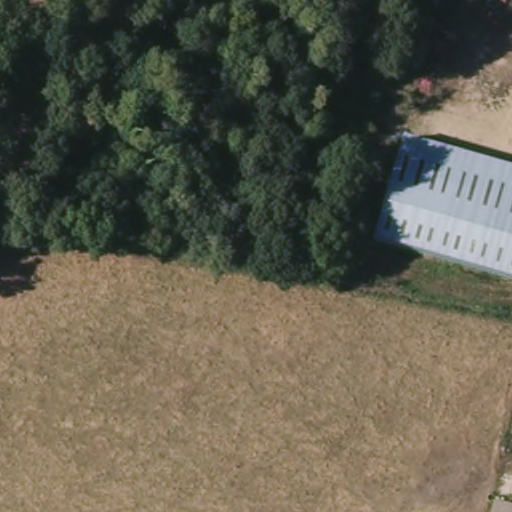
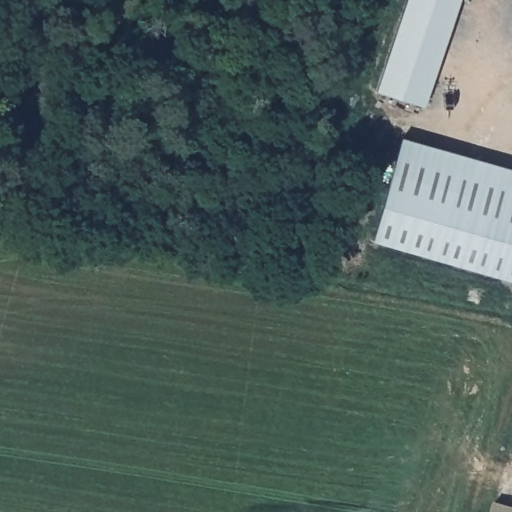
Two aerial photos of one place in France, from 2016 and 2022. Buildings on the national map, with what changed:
new [(406,0),(459,0),(424,107),(376,90),(406,0)]
unchanged [(397,147),(512,163),(512,268),(384,250),(397,147)]
unchanged [(495,506),(511,512),(493,512),(495,506)]

